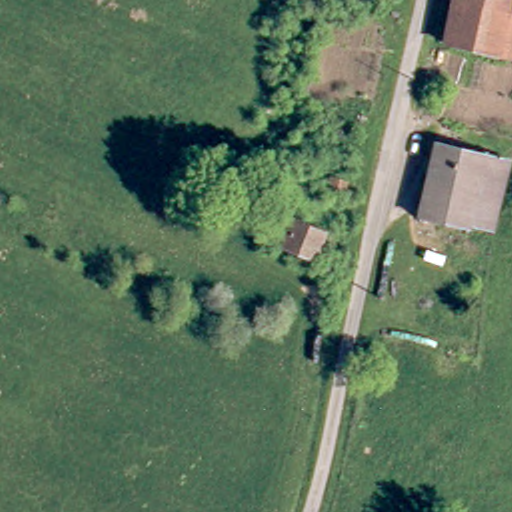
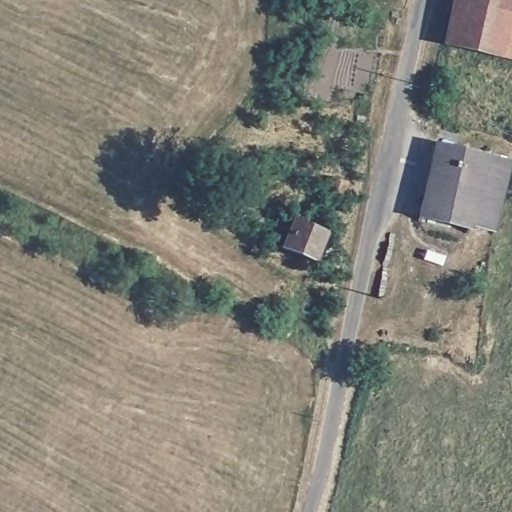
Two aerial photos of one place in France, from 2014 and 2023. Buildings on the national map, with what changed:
unchanged [(505,12),(512,14),(512,62),(440,45),(451,0),(508,0),(505,12)]
unchanged [(422,215),(439,145),(512,161),(495,234),(472,229),(422,215)]
unchanged [(348,183),(332,179),(335,164),(352,167),(348,183)]
unchanged [(296,207),(327,219),(316,248),(287,236),(288,234),(274,228),(282,207),(294,212),(296,207)]

